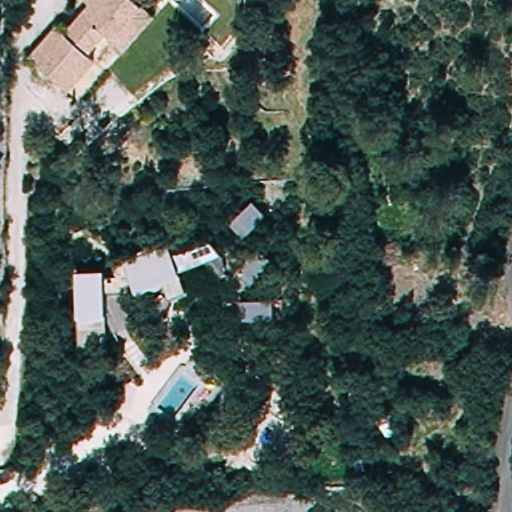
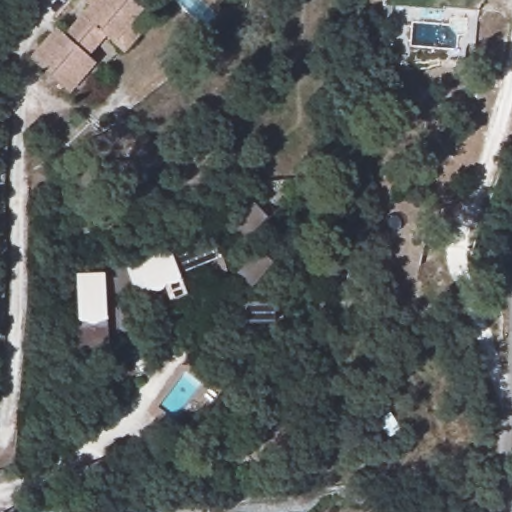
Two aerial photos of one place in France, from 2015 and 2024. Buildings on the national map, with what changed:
unchanged [(60,26),(67,34),(92,4),(89,0),(143,0),(157,14),(128,51),(108,34),(92,55),(97,61),(69,92),(34,55),(60,26)]
unchanged [(154,0),(174,0),(165,10),(154,0)]
unchanged [(251,202),(264,217),(241,241),(228,224),(251,202)]
unchanged [(127,261),(170,245),(174,257),(211,242),(223,257),(181,274),(186,292),(170,299),(165,285),(164,283),(164,284),(163,285),(163,286),(162,287),(162,288),(161,289),(159,290),(158,290),(157,291),(156,291),(155,291),(154,290),(153,290),(152,290),(152,289),(150,289),(149,290),(148,290),(147,291),(145,294),(144,294),(143,295),(142,295),(141,296),(140,296),(139,296),(138,295),(137,295),(135,294),(135,293),(134,292),(134,291),(127,261)]
unchanged [(257,250),(271,264),(248,287),(234,273),(257,250)]
unchanged [(77,274),(103,274),(104,316),(102,318),(100,320),(98,321),(95,322),(93,323),(90,324),(88,324),(85,323),(83,323),(81,322),(78,321),(77,319),(77,274)]
unchanged [(238,302),(270,302),(270,323),(238,323),(238,302)]
unchanged [(352,368),(362,368),(363,382),(353,382),(352,368)]

